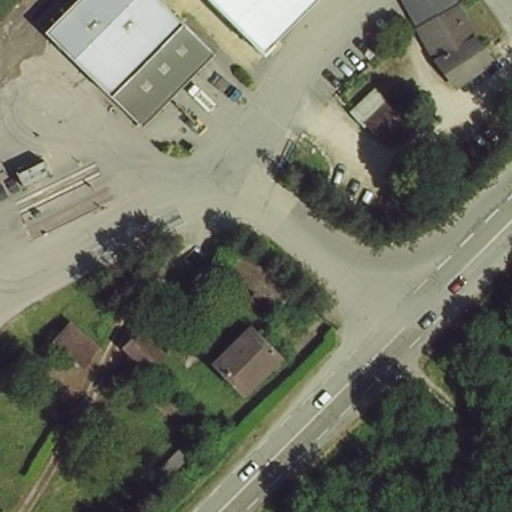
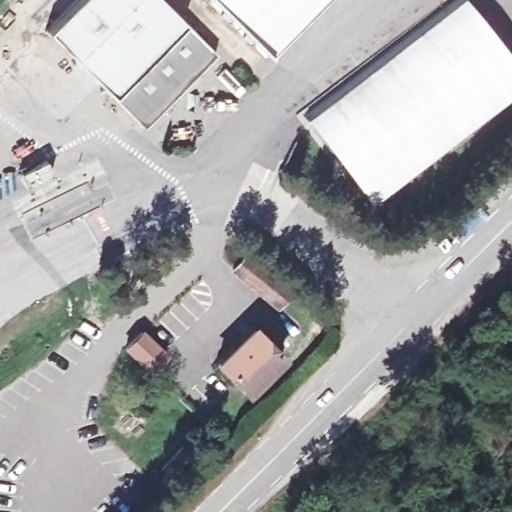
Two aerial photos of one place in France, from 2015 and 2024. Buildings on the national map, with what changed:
unchanged [(177,23),(105,88),(40,19),(62,0),(157,0),(177,23)]
unchanged [(265,55),(212,0),(318,0),(265,55)]
new [(457,0),(463,0),(512,62),(512,91),(366,202),(302,117),(457,0)]
demolished [(407,23),(391,0),(441,0),(442,1),(407,23)]
demolished [(508,60),(512,65),(512,88),(480,111),(456,86),(442,71),(429,57),(407,23),(442,1),(455,22),(467,16),(477,31),(471,35),(475,40),(490,58),(497,67),(508,60)]
unchanged [(177,23),(208,56),(137,124),(105,88),(177,23)]
demolished [(395,122),(397,131),(365,147),(355,127),(375,116),(370,103),(396,87),(411,114),(395,122)]
demolished [(487,154),(465,175),(446,155),(468,134),(487,154)]
unchanged [(256,256),(297,294),(285,308),(243,269),(256,256)]
unchanged [(218,361),(255,325),(284,354),(249,390),(218,361)]
unchanged [(56,345),(68,326),(96,343),(83,363),(56,345)]
unchanged [(147,331),(171,355),(153,374),(129,350),(147,331)]

